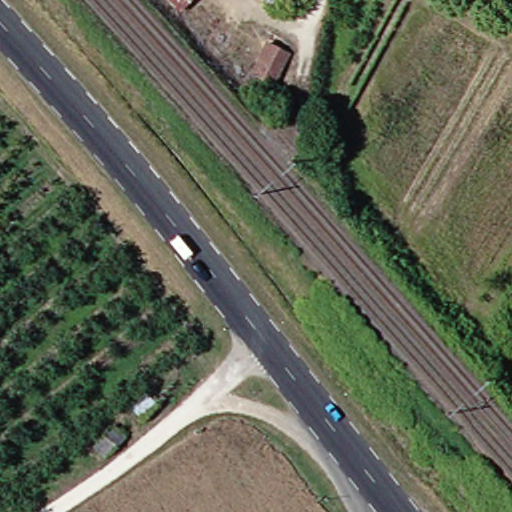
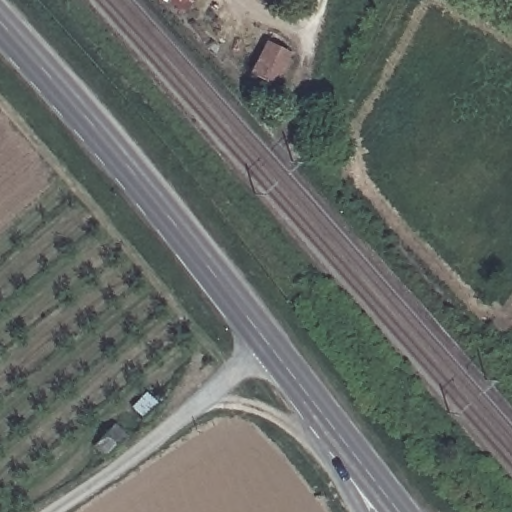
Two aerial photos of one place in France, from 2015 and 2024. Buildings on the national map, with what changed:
unchanged [(249,76),(267,48),(288,60),(269,92),(249,76)]

